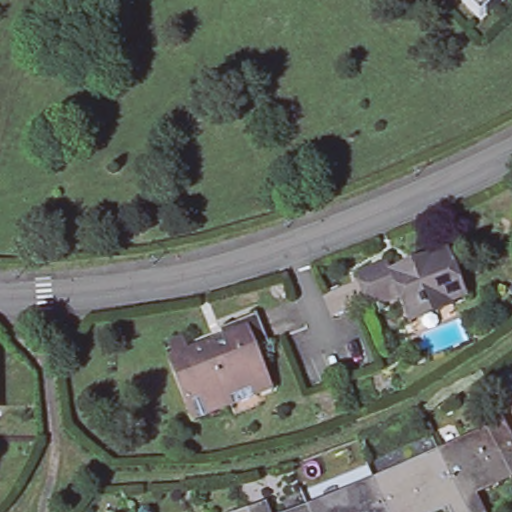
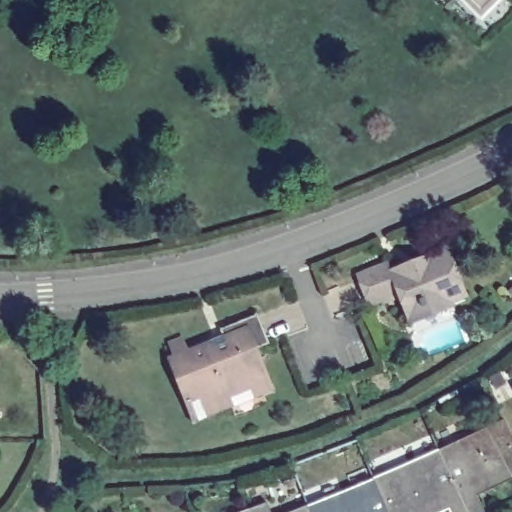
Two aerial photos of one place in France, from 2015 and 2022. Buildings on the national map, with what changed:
unchanged [(483,17),(466,0),(499,0),(483,17)]
unchanged [(411,321),(406,310),(400,295),(383,301),(382,297),(370,301),(360,273),(391,262),(394,270),(414,261),(434,252),(437,256),(450,250),(467,291),(450,297),(454,305),(411,321)]
unchanged [(272,341),(261,346),(275,383),(255,392),(254,387),(232,396),(234,400),(213,407),(208,395),(189,402),(170,356),(186,349),(192,349),(215,341),(222,343),(230,341),(224,326),(261,312),(272,341)]
unchanged [(509,427),(512,433),(512,479),(479,496),(486,512),(467,512),(442,458),(509,427)]
unchanged [(444,512),(388,512),(376,485),(442,458),(467,512),(450,512),(449,510),(444,512)]
unchanged [(388,512),(311,512),(376,485),(388,512)]

